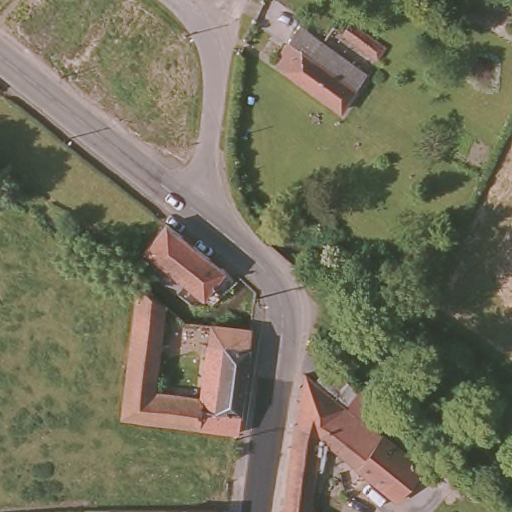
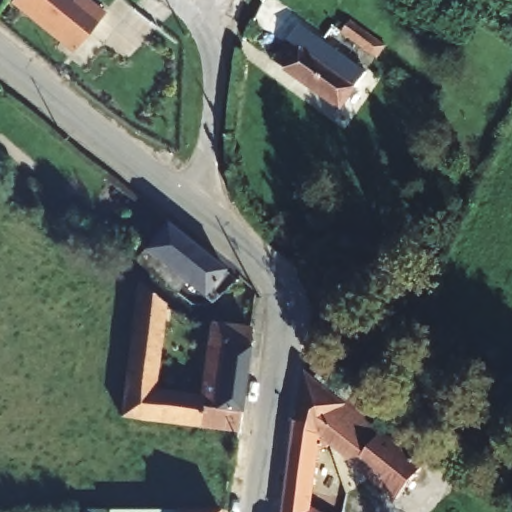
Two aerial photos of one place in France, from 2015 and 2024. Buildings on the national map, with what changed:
new [(73,54),(10,2),(13,0),(91,0),(106,12),(73,54)]
demolished [(128,0),(78,77),(50,60),(89,0),(128,0)]
unchanged [(379,59),(345,34),(353,21),(355,22),(387,47),(379,59)]
unchanged [(296,22),(363,69),(361,72),(339,106),(271,55),(296,22)]
unchanged [(166,222),(226,270),(205,297),(200,293),(193,303),(138,257),(166,222)]
unchanged [(122,422),(124,411),(140,287),(165,307),(155,394),(202,400),(208,347),(211,328),(251,333),(249,352),(240,436),(236,436),(215,433),(122,422)]
unchanged [(414,480),(398,498),(334,445),(318,451),(320,441),(294,437),(305,371),(383,434),(425,468),(414,480)]
unchanged [(294,437),(320,441),(318,451),(309,512),(284,512),(294,437)]
unchanged [(87,511),(202,508),(221,507),(220,512),(87,512),(87,511)]

